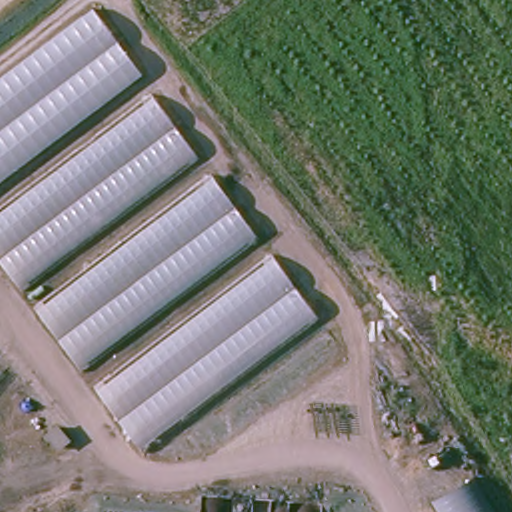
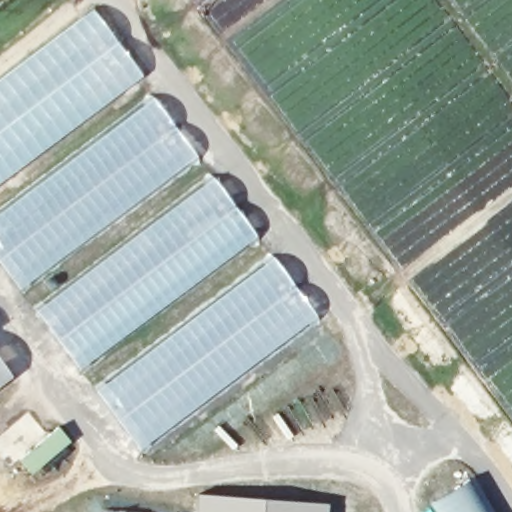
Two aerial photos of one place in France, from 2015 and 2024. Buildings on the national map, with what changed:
unchanged [(0,182),(0,87),(96,12),(145,71),(0,182)]
unchanged [(23,285),(0,257),(0,218),(158,93),(200,151),(23,285)]
unchanged [(85,370),(43,309),(220,172),(259,235),(85,370)]
unchanged [(105,392),(281,255),(323,314),(145,445),(105,392)]
new [(12,375),(0,384),(0,360),(12,375)]
unchanged [(441,512),(434,499),(476,474),(495,512),(441,512)]
new [(331,502),(330,512),(195,512),(196,492),(331,502)]

